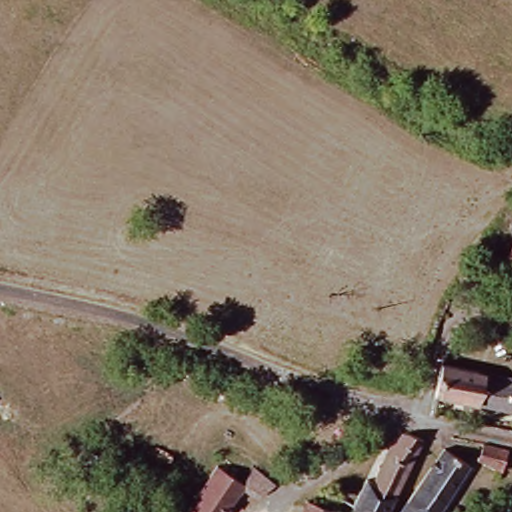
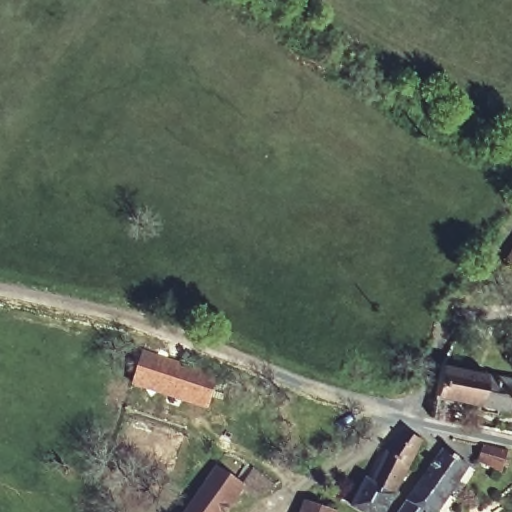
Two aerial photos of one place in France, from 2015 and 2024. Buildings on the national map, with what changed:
unchanged [(512,263),(508,260),(512,253),(512,263)]
new [(142,350),(218,373),(207,410),(130,386),(142,350)]
unchanged [(450,404),(433,401),(442,367),(512,381),(512,413),(452,398),(450,404)]
unchanged [(390,450),(399,434),(403,431),(422,442),(387,512),(353,512),(350,510),(366,482),(372,485),(390,450)]
unchanged [(507,454),(503,472),(478,461),(482,448),(507,454)]
unchanged [(440,453),(465,468),(434,512),(398,512),(440,453)]
unchanged [(214,468),(242,490),(250,471),(280,483),(252,502),(240,496),(228,512),(181,512),(214,468)]
unchanged [(303,500),(331,512),(299,512),(303,500)]

